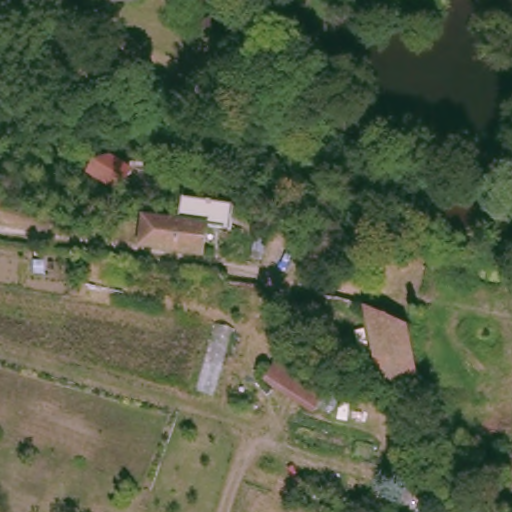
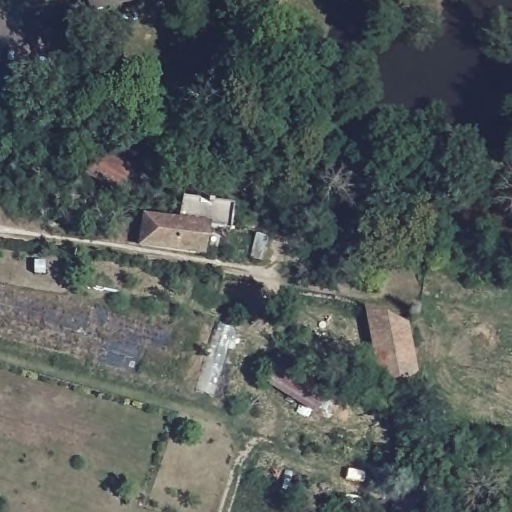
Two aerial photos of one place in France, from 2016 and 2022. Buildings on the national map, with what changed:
unchanged [(89,11),(86,0),(132,0),(132,2),(89,11)]
unchanged [(202,47),(188,52),(183,39),(197,33),(202,47)]
unchanged [(7,67),(10,94),(0,94),(0,67),(7,67)]
unchanged [(97,169),(103,168),(112,168),(130,176),(118,196),(84,178),(80,175),(97,169)]
unchanged [(190,197),(236,205),(233,227),(209,225),(205,249),(147,240),(150,216),(178,220),(182,197),(190,197)]
unchanged [(436,245),(435,250),(427,249),(429,242),(436,245)]
unchanged [(409,357),(412,377),(380,380),(363,304),(365,305),(402,326),(409,357)]
unchanged [(257,378),(280,350),(332,394),(313,418),(257,378)]

